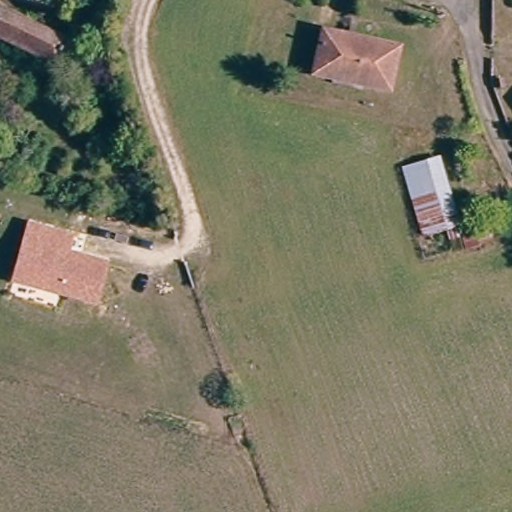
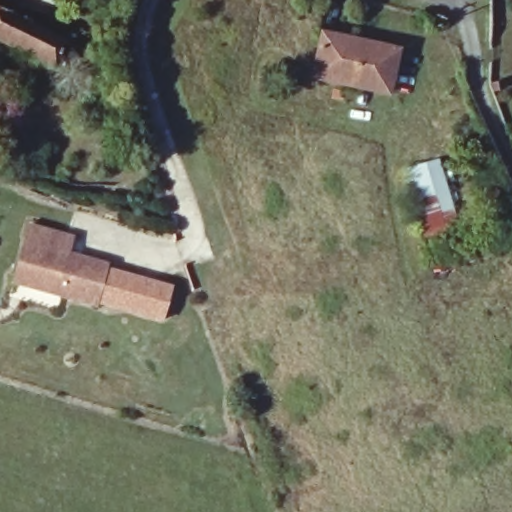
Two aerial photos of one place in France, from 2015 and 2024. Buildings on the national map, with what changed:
unchanged [(59,67),(0,39),(0,5),(70,37),(59,67)]
unchanged [(325,35),(394,47),(383,91),(315,77),(325,35)]
unchanged [(400,167),(440,155),(462,230),(424,240),(400,167)]
unchanged [(97,307),(12,282),(29,221),(75,234),(70,250),(110,261),(97,307)]
new [(164,321),(98,303),(108,267),(174,286),(164,321)]

